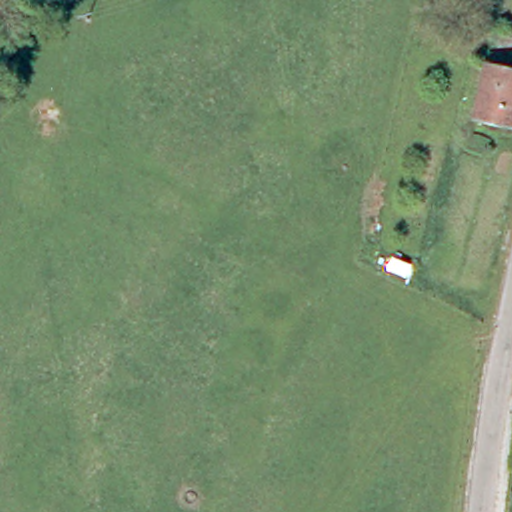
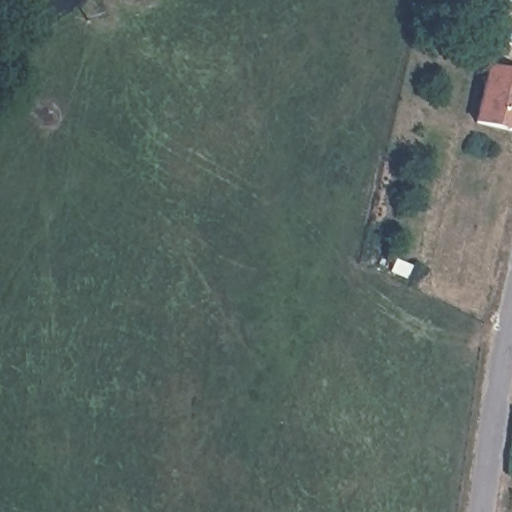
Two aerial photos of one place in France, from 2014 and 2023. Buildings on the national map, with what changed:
unchanged [(512,125),(473,115),(487,61),(512,67),(512,125)]

